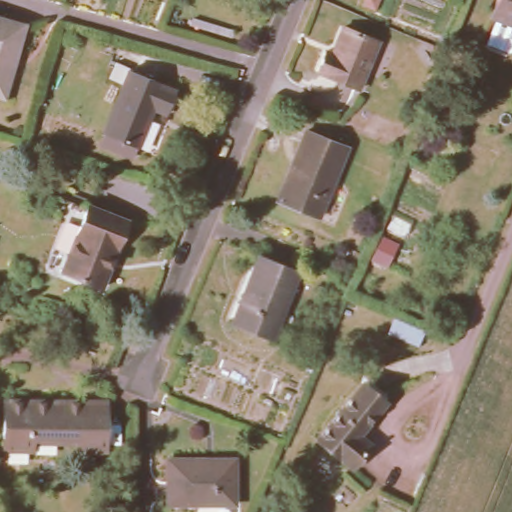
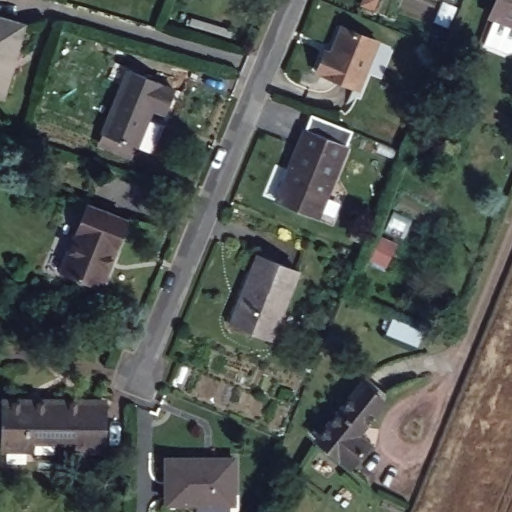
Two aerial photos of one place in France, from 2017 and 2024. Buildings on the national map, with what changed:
unchanged [(512,0),(512,24),(488,15),(494,0),(512,0)]
unchanged [(0,95),(0,17),(23,24),(2,96),(0,95)]
unchanged [(356,88),(310,69),(320,49),(326,51),(337,23),(376,38),(356,88)]
unchanged [(170,88),(160,113),(145,107),(129,146),(97,132),(122,69),(170,88)]
unchanged [(301,126),(345,144),(318,212),(273,194),(301,126)]
unchanged [(78,200),(117,215),(90,284),(50,268),(78,200)]
unchanged [(250,259),(293,275),(265,342),(223,325),(250,259)]
unchanged [(349,381),(370,399),(346,432),(355,440),(336,464),(304,438),(349,381)]
unchanged [(25,448),(0,448),(0,398),(102,398),(103,447),(75,446),(75,437),(25,437),(25,448)]
unchanged [(169,498),(169,452),(236,453),(235,499),(169,498)]

